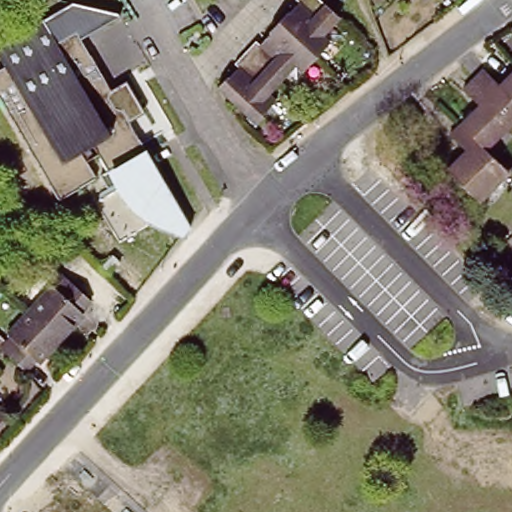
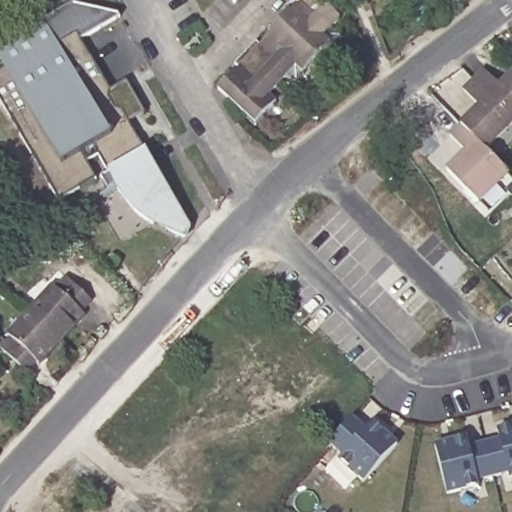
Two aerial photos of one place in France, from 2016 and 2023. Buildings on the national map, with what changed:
unchanged [(340,20),(331,29),(340,37),(330,49),(328,46),(300,74),(303,75),(293,85),(285,76),(267,95),(273,100),(260,115),(262,116),(253,125),(244,116),(246,115),(216,86),(227,75),(229,77),(239,66),(235,63),(257,42),(260,45),(270,35),(268,34),(290,12),(292,14),(301,4),(297,0),(319,0),(340,20)]
unchanged [(122,199),(122,196),(120,191),(119,187),(119,185),(126,182),(118,169),(111,172),(101,155),(89,162),(100,179),(60,201),(0,97),(0,71),(8,66),(0,52),(0,47),(47,20),(57,40),(79,27),(148,151),(163,176),(122,199)]
unchanged [(486,65),(500,80),(512,69),(512,111),(477,74),(486,65)]
unchanged [(512,128),(490,149),(461,117),(480,100),(464,85),(477,74),(512,111),(512,128)]
unchanged [(505,165),(475,193),(444,159),(462,142),(449,130),(461,117),(490,149),(505,165)]
unchanged [(191,222),(186,234),(184,234),(182,235),(180,235),(175,234),(173,235),(170,235),(167,235),(165,235),(163,234),(160,233),(157,232),(155,230),(153,229),(149,224),(141,229),(140,228),(138,226),(137,226),(137,225),(134,221),(132,219),(130,216),(128,214),(127,210),(125,206),(124,203),(122,199),(163,176),(191,222)]
demolished [(90,232),(103,245),(91,258),(77,245),(90,232)]
unchanged [(60,281),(62,284),(71,275),(97,298),(86,310),(89,312),(67,337),(35,308),(60,281)]
unchanged [(67,337),(42,363),(39,360),(30,371),(4,346),(13,335),(12,333),(35,308),(67,337)]
unchanged [(4,415),(0,419),(0,411),(4,415)]
new [(362,482),(337,458),(340,455),(328,445),(352,414),(367,428),(372,421),(398,443),(362,482)]
new [(505,471),(478,480),(476,486),(472,488),(467,487),(448,493),(441,491),(433,445),(466,435),(469,445),(500,436),(497,430),(512,425),(512,474),(506,475),(505,471)]

